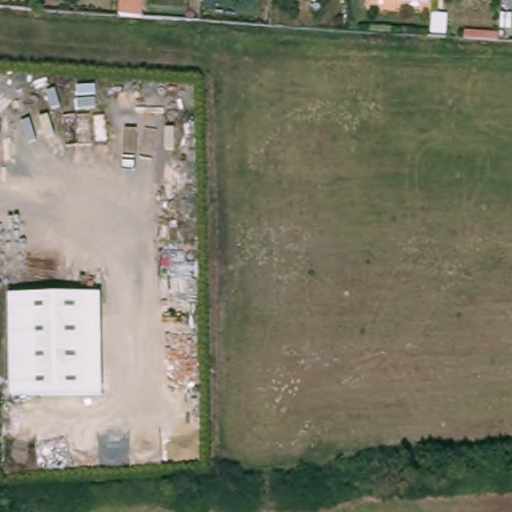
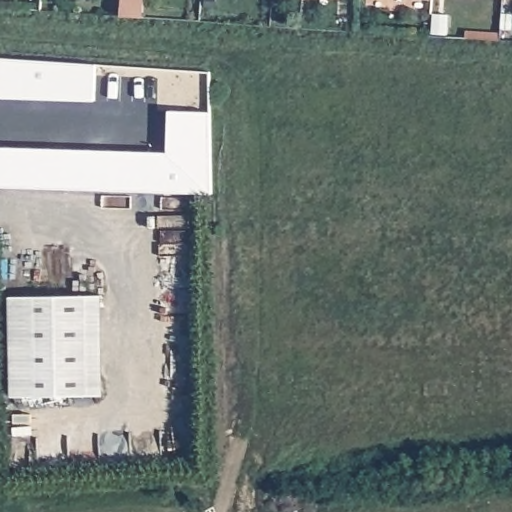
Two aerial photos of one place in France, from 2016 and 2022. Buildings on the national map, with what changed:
unchanged [(143,0),(142,16),(129,15),(121,15),(122,0),(143,0)]
new [(93,63),(91,100),(0,97),(0,57),(93,63)]
new [(165,152),(166,110),(207,111),(208,193),(0,187),(0,147),(165,152)]
unchanged [(106,290),(107,390),(92,390),(91,291),(106,290)]
unchanged [(92,390),(16,392),(15,292),(91,291),(92,390)]

